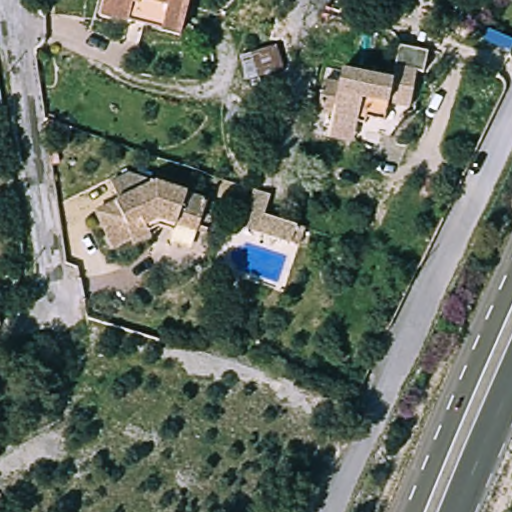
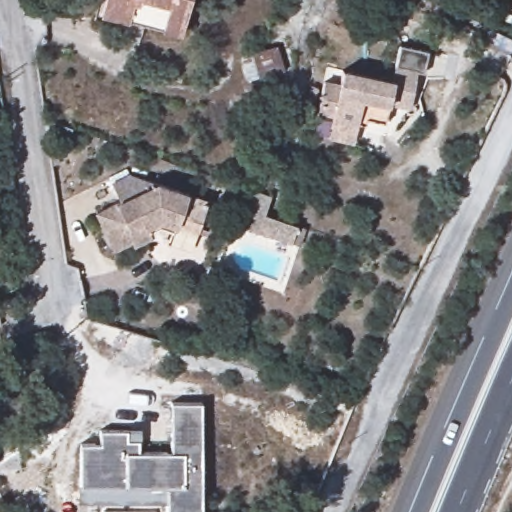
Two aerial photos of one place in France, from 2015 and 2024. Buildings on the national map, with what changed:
unchanged [(106,0),(192,0),(182,39),(102,16),(106,0)]
unchanged [(238,52),(275,41),(282,65),(246,77),(238,52)]
unchanged [(325,137),(327,124),(328,116),(317,114),(322,81),(333,83),(336,66),(384,73),(386,62),(392,63),(396,41),(425,46),(422,68),(415,67),(409,101),(385,97),(383,112),(370,110),(368,122),(357,121),(355,128),(353,141),(325,137)]
unchanged [(122,201),(113,183),(132,174),(209,201),(199,235),(183,228),(180,240),(163,234),(135,247),(133,243),(115,251),(97,214),(122,201)]
unchanged [(300,226),(292,245),(275,239),(243,228),(249,211),(255,190),(272,196),(267,215),(279,219),(300,226)]
new [(163,512),(163,502),(78,503),(78,485),(80,485),(79,443),(100,443),(99,430),(126,430),(126,428),(140,428),(140,452),(170,451),(170,402),(201,401),(201,512),(163,512)]

